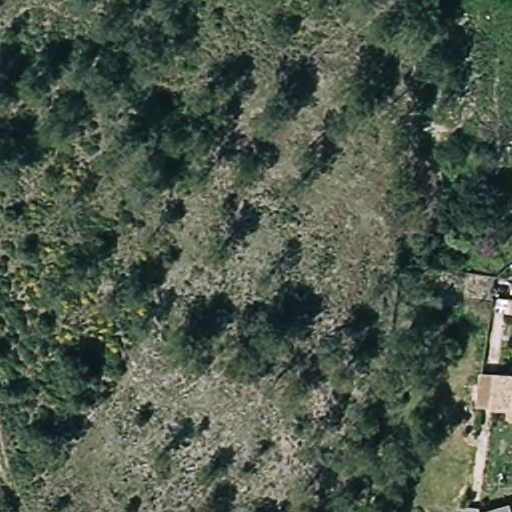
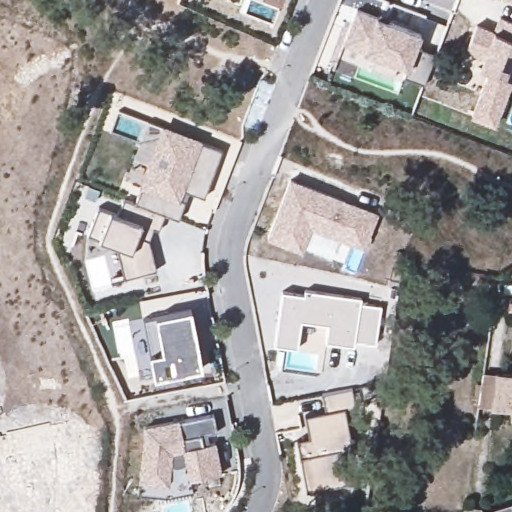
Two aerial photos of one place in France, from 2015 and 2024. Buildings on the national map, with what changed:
new [(512,2),(508,0),(512,0),(512,2)]
new [(375,16),(422,34),(416,48),(434,54),(423,84),(403,76),(405,69),(397,65),(392,77),(368,68),(372,56),(363,53),(341,45),(355,9),(375,16)]
new [(498,17),(512,22),(512,83),(506,98),(480,87),(486,72),(478,69),(482,57),(465,51),(476,24),(491,30),(498,17)]
new [(97,207),(109,212),(117,215),(123,199),(134,203),(141,187),(139,186),(162,126),(202,141),(201,143),(221,151),(203,198),(188,193),(177,220),(164,215),(158,231),(153,229),(147,241),(155,270),(123,279),(115,246),(100,240),(87,234),(97,207)]
new [(377,214),(363,250),(310,230),(300,254),(265,238),(289,179),(377,214)]
new [(283,293),(305,297),(306,292),(362,300),(361,305),(382,308),(376,346),(356,343),(355,348),(326,344),(329,326),(302,323),(298,350),(275,347),(283,293)]
new [(191,311),(194,330),(202,370),(154,379),(143,320),(182,313),(191,311)]
unchanged [(512,371),(512,416),(508,415),(509,407),(490,406),(490,405),(477,403),(481,370),(512,371)]
new [(297,440),(308,439),(304,416),(324,412),(322,395),(352,389),(356,406),(343,408),(351,447),(339,450),(345,483),(311,490),(304,486),(297,440)]
new [(200,434),(202,445),(215,444),(222,474),(187,480),(183,465),(169,467),(167,484),(137,481),(142,427),(178,420),(213,415),(215,431),(200,434)]
unchanged [(512,512),(471,512),(508,500),(512,512)]

